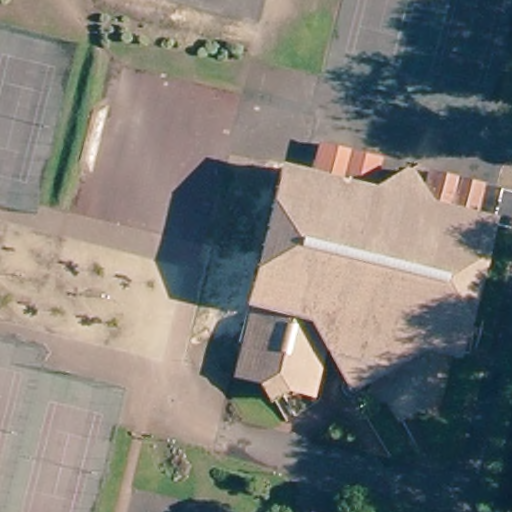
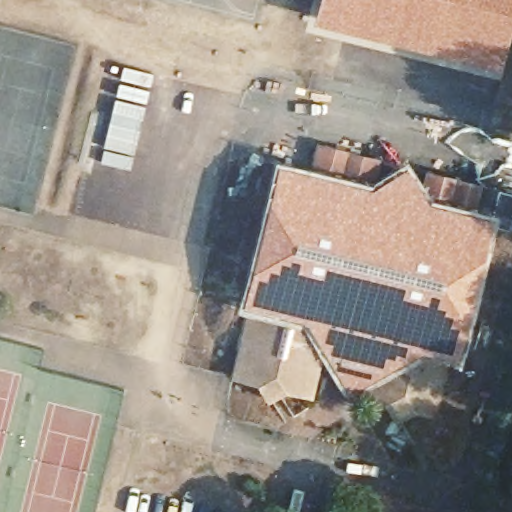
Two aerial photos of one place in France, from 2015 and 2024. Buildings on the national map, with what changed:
new [(512,0),(512,15),(506,41),(453,30),(448,42),(434,40),(431,51),(371,40),(312,25),(317,0),(512,0)]
new [(434,40),(448,42),(453,30),(506,41),(499,70),(431,51),(434,40)]
unchanged [(449,360),(435,417),(413,413),(397,425),(384,405),(364,400),(369,385),(349,395),(324,354),(311,400),(284,393),(267,403),(258,387),(230,380),(247,310),(242,308),(269,204),(278,169),(369,192),(401,172),(409,174),(419,191),(426,189),(432,165),(486,180),(499,182),(490,220),(455,360),(449,360)]

